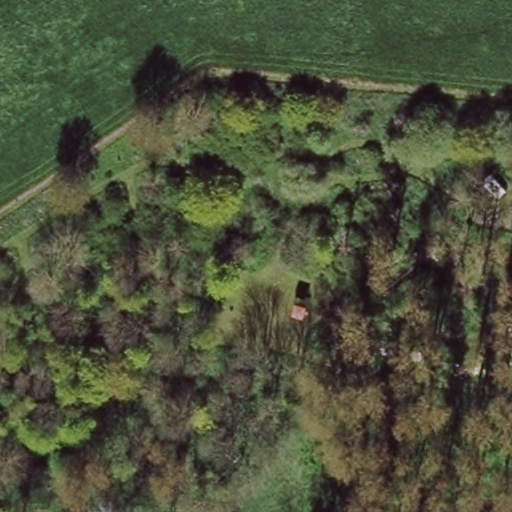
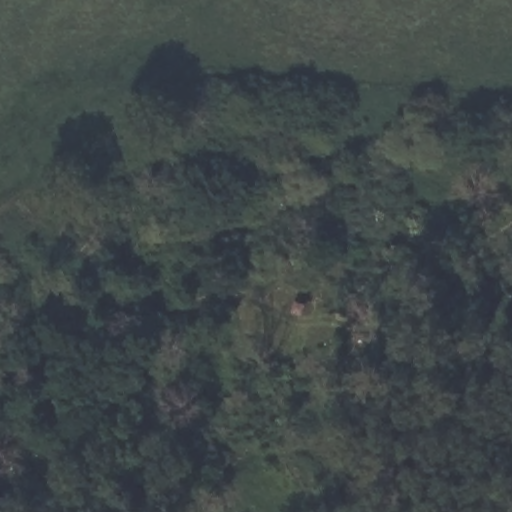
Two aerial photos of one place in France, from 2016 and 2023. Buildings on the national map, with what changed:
unchanged [(219,489),(234,471),(259,490),(243,508),(219,489)]

